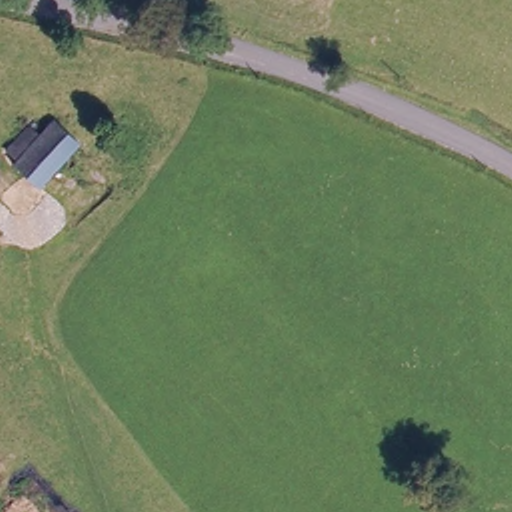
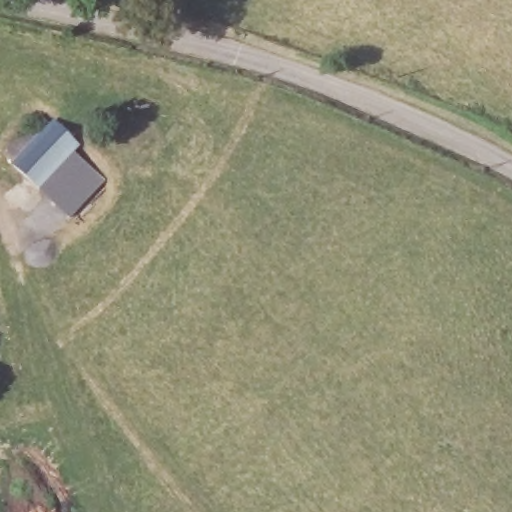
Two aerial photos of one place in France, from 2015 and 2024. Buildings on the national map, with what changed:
unchanged [(37,185),(12,161),(16,156),(7,148),(29,127),(37,134),(52,121),(80,145),(37,185)]
new [(72,218),(37,185),(73,151),(106,179),(72,218)]

